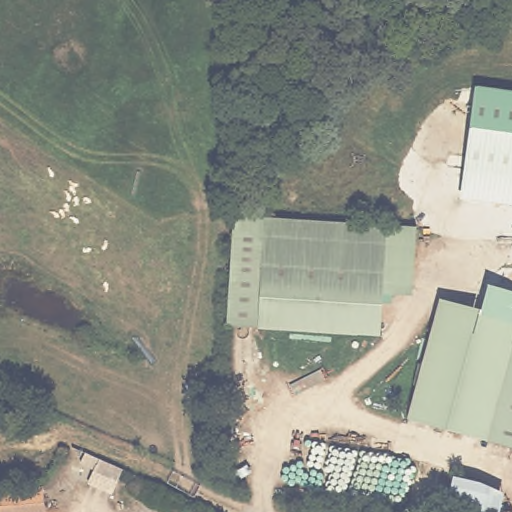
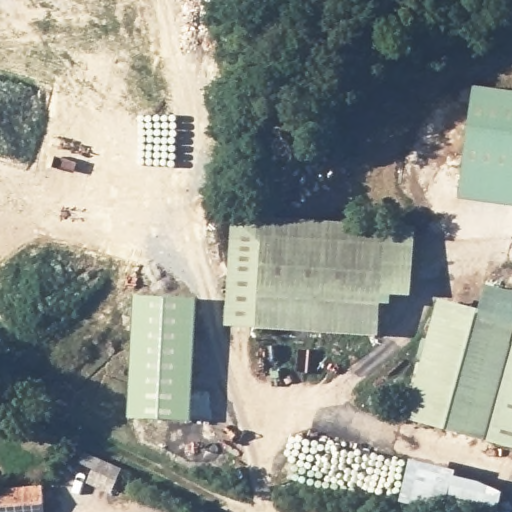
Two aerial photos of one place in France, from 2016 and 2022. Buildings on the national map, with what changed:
unchanged [(476,88),(512,92),(512,208),(460,200),(476,88)]
unchanged [(261,217),(254,329),(227,327),(234,218),(261,217)]
unchanged [(415,224),(407,337),(254,329),(261,217),(415,224)]
unchanged [(437,299),(481,310),(488,282),(512,290),(512,445),(409,419),(437,299)]
new [(197,300),(192,421),(129,418),(134,296),(197,300)]
new [(92,470),(79,464),(84,452),(123,469),(111,495),(86,485),(92,470)]
unchanged [(452,471),(509,477),(507,511),(449,505),(452,471)]
unchanged [(0,512),(0,507),(0,484),(46,480),(48,512),(0,512)]

